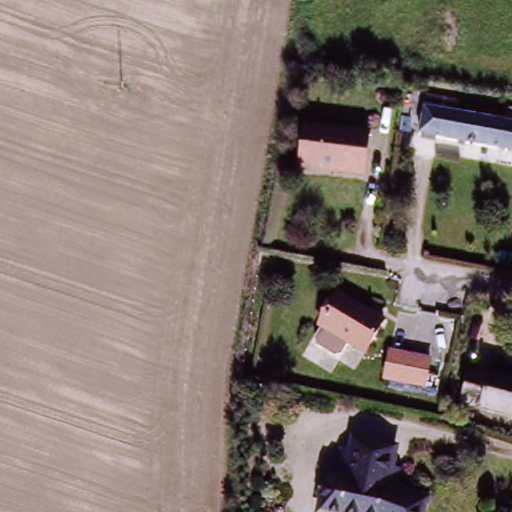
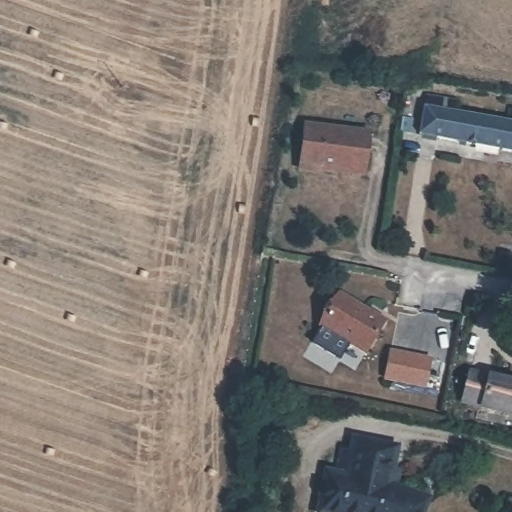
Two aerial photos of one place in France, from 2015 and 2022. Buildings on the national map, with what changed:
unchanged [(421,139),(429,99),(458,105),(457,116),(510,126),(512,114),(512,158),(421,139)]
unchanged [(365,175),(321,170),(320,173),(298,170),(304,124),(370,131),(365,175)]
unchanged [(384,320),(365,353),(321,326),(340,294),(384,320)]
unchanged [(430,364),(425,392),(385,384),(391,356),(430,364)]
unchanged [(463,408),(472,376),(512,386),(512,421),(463,408)]
unchanged [(388,472),(394,473),(391,489),(423,502),(420,512),(314,512),(322,476),(331,478),(336,454),(347,456),(348,443),(392,452),(388,472)]

